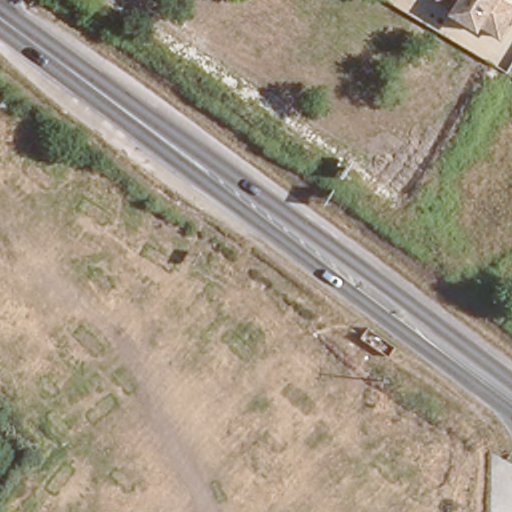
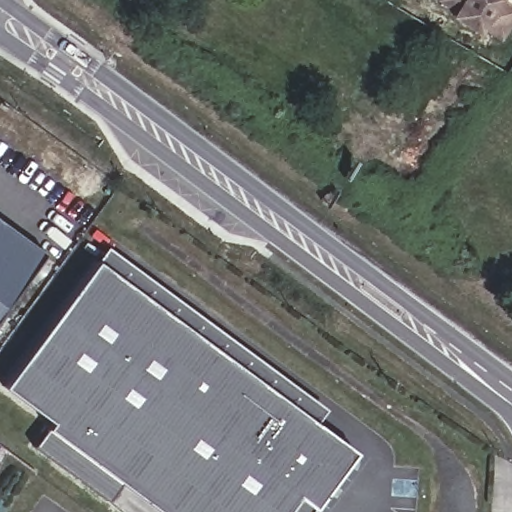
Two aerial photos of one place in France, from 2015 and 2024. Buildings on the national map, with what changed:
unchanged [(502,42),(483,32),(480,37),(450,20),(455,10),(437,1),(437,0),(512,0),(512,25),(502,42)]
new [(0,314),(0,222),(44,254),(0,314)]
new [(96,260),(106,245),(325,408),(315,423),(354,451),(313,506),(309,512),(162,512),(121,480),(107,500),(35,445),(47,427),(52,422),(4,385),(96,260)]

